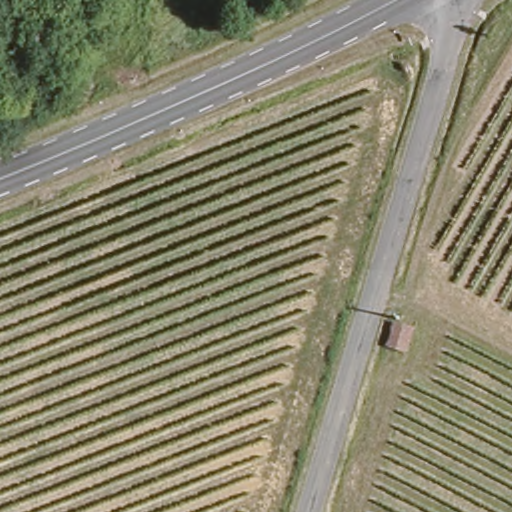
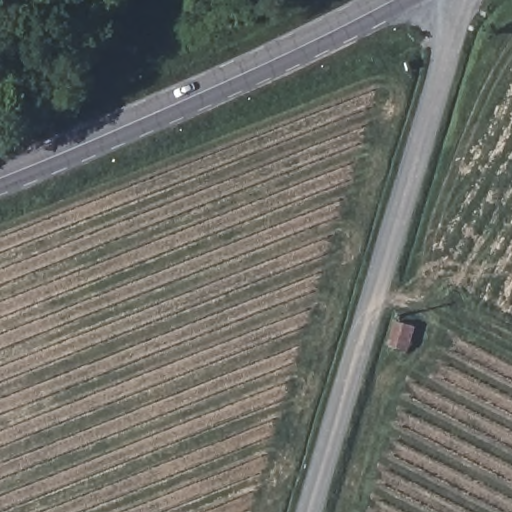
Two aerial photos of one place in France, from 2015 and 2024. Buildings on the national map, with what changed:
unchanged [(401,351),(384,346),(392,321),(408,326),(401,351)]

